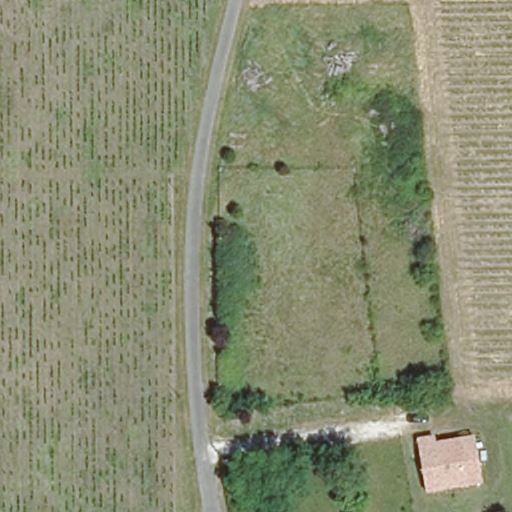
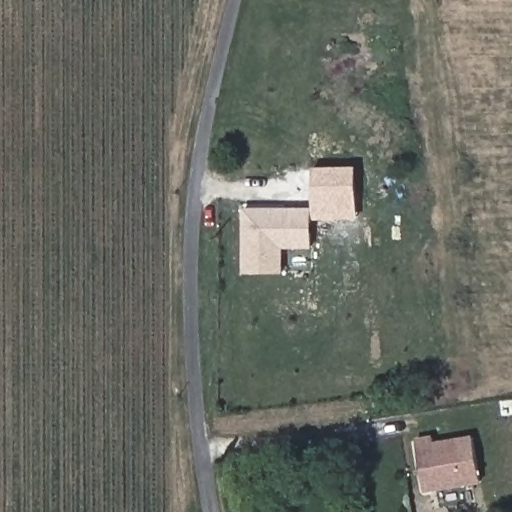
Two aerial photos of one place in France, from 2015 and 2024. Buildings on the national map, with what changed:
new [(313,208),(314,167),(357,166),(359,219),(313,219),(313,208)]
new [(250,208),(313,208),(313,248),(284,249),(284,266),(277,266),(277,273),(246,273),(250,208)]
unchanged [(474,434),(481,482),(425,492),(416,438),(434,435),(436,441),(474,434)]

